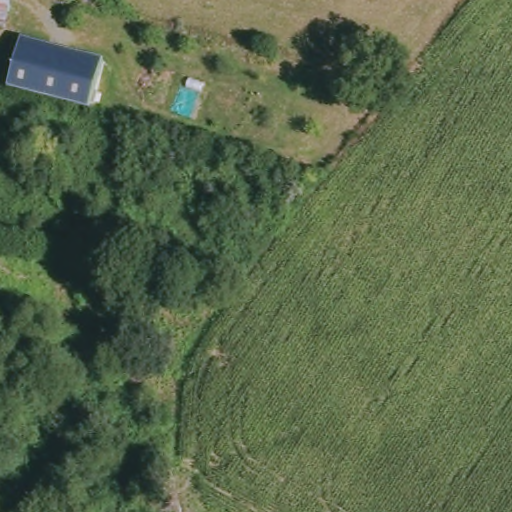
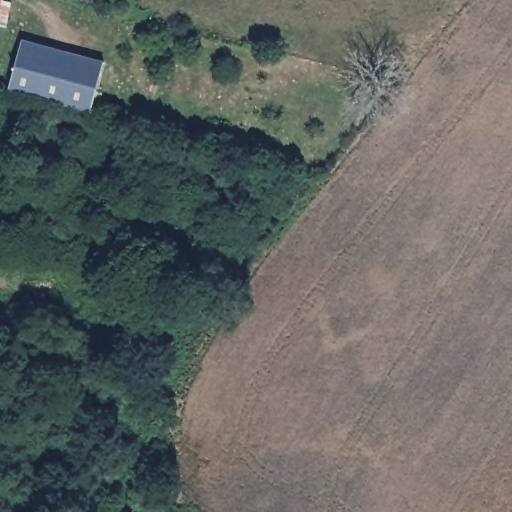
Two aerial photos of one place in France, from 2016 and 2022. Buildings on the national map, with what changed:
unchanged [(79,0),(96,0),(94,7),(79,0)]
unchanged [(0,2),(10,3),(7,29),(0,27),(0,2)]
unchanged [(9,91),(21,42),(104,63),(90,114),(9,91)]

